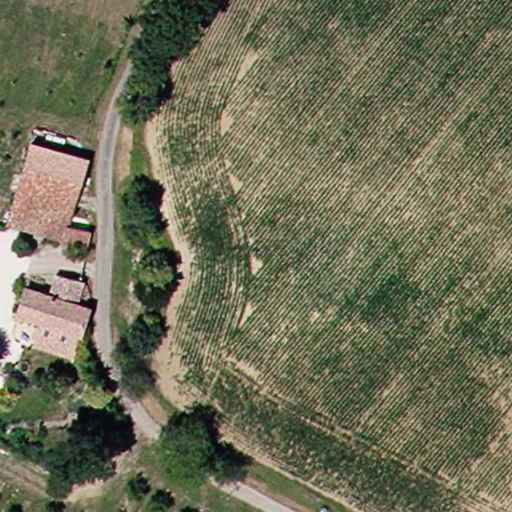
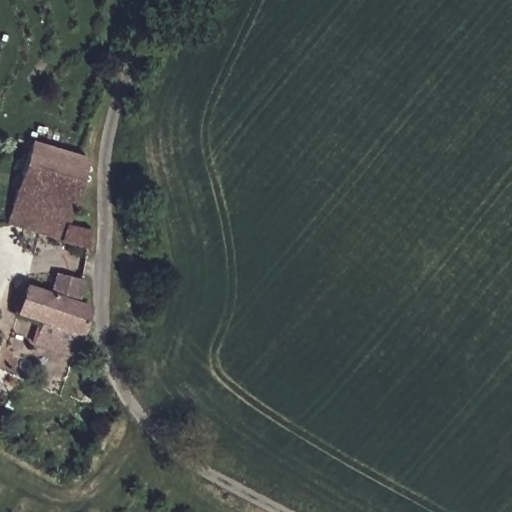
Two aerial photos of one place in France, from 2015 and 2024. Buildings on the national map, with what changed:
unchanged [(94,254),(0,216),(23,144),(80,157),(64,218),(94,222),(94,254)]
unchanged [(16,319),(24,291),(50,300),(55,277),(81,285),(74,306),(87,310),(78,340),(16,319)]
unchanged [(78,340),(73,358),(34,346),(38,326),(78,340)]

